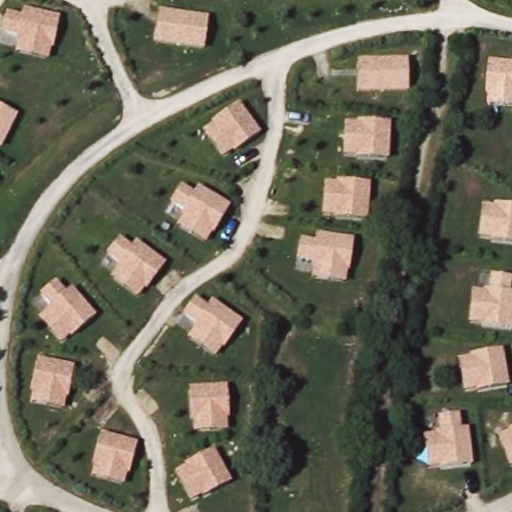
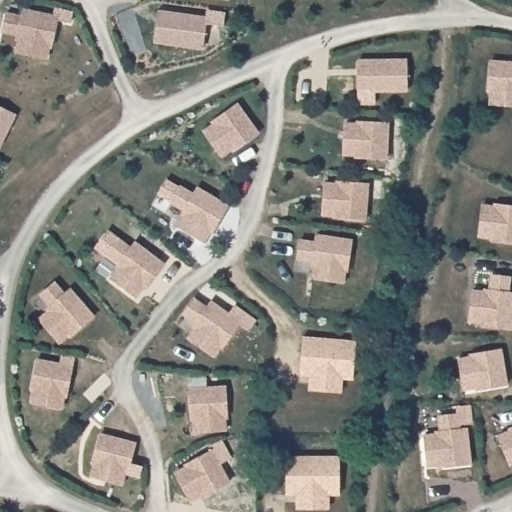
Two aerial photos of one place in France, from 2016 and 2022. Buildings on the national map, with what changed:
unchanged [(15,51),(18,35),(2,32),(7,11),(22,14),(23,7),(60,15),(51,59),(15,51)]
unchanged [(155,43),(160,8),(210,14),(206,49),(155,43)]
unchanged [(360,92),(359,58),(408,57),(409,91),(360,92)]
unchanged [(491,59),(512,60),(512,107),(489,104),(491,59)]
unchanged [(204,129),(239,103),(261,133),(224,157),(204,129)]
unchanged [(0,148),(0,108),(17,115),(2,149),(0,148)]
unchanged [(344,156),(344,120),(391,121),(390,158),(344,156)]
unchanged [(323,216),(325,182),(370,183),(368,218),(323,216)]
unchanged [(175,225),(184,209),(171,201),(182,184),(195,192),(199,185),(231,205),(208,244),(175,225)]
unchanged [(495,204),(495,202),(512,204),(512,240),(479,237),(482,203),(495,204)]
unchanged [(311,279),(312,261),(298,260),(303,238),(315,239),(317,232),(354,237),(348,281),(311,279)]
unchanged [(109,276),(117,263),(107,255),(119,236),(132,246),(137,239),(168,262),(140,298),(109,276)]
unchanged [(489,288),(490,274),(512,274),(510,293),(512,293),(512,327),(483,325),(483,322),(470,322),(472,287),(489,288)]
unchanged [(39,318),(51,306),(41,294),(57,280),(66,291),(71,287),(96,315),(61,344),(39,318)]
unchanged [(188,337),(196,324),(184,314),(195,297),(208,306),(214,299),(243,320),(216,358),(188,337)]
new [(357,338),(354,380),(344,380),(344,391),(308,390),(309,377),(299,376),(303,335),(357,338)]
unchanged [(458,355),(503,347),(509,383),(465,391),(458,355)]
unchanged [(30,402),(38,358),(74,364),(65,408),(30,402)]
unchanged [(194,433),(191,386),(228,384),(231,430),(194,433)]
unchanged [(424,433),(440,430),(438,415),(459,412),(462,428),(469,427),(473,461),(429,468),(424,433)]
unchanged [(512,428),(512,463),(510,464),(498,433),(512,428)]
unchanged [(91,475),(100,433),(137,442),(126,484),(91,475)]
unchanged [(175,471),(213,447),(230,480),(193,501),(175,471)]
new [(340,496),(331,496),(330,507),(296,507),(296,495),(286,495),(286,455),(340,454),(340,496)]

